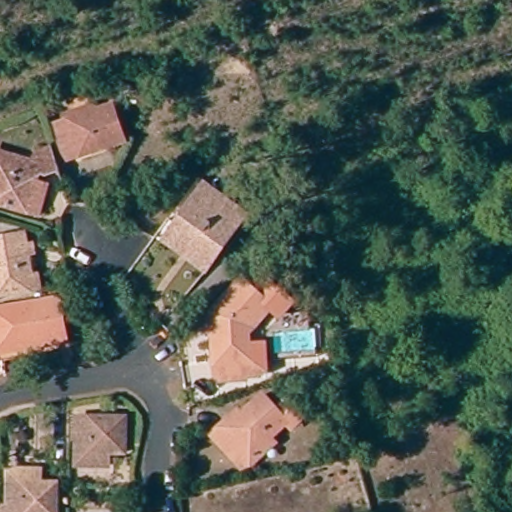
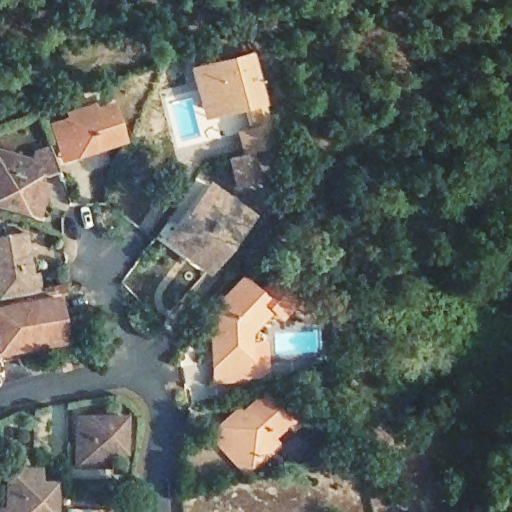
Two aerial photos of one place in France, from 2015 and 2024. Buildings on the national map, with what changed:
new [(234,189),(227,158),(241,154),(235,131),(251,126),(246,108),(243,109),(201,121),(188,66),(249,50),(262,99),(275,146),(252,151),(259,180),(234,189)]
unchanged [(57,140),(51,122),(69,116),(66,110),(91,100),(93,107),(109,102),(121,136),(78,151),(63,156),(57,140)]
unchanged [(38,211),(0,200),(0,148),(11,152),(38,159),(35,148),(50,143),(58,165),(41,171),(39,163),(35,177),(46,180),(38,211)]
unchanged [(166,240),(176,226),(207,187),(248,218),(217,258),(207,272),(166,240)]
unchanged [(24,244),(29,243),(31,254),(26,255),(29,277),(35,276),(38,292),(0,298),(0,238),(21,235),(24,244)]
unchanged [(245,374),(235,374),(235,379),(206,381),(204,335),(199,335),(198,318),(199,318),(233,280),(249,294),(260,281),(282,302),(270,315),(261,307),(237,332),(238,344),(243,344),(255,344),(257,373),(245,374)]
unchanged [(0,308),(57,299),(64,339),(65,343),(15,351),(16,359),(0,361),(0,308)]
unchanged [(247,464),(233,477),(200,440),(212,429),(228,416),(231,419),(252,400),(267,416),(280,404),(295,420),(281,433),(277,428),(259,444),(264,449),(247,464)]
unchanged [(74,465),(74,445),(75,415),(123,417),(123,453),(106,453),(106,466),(74,465)]
unchanged [(1,512),(1,499),(1,479),(33,479),(33,493),(50,493),(50,512),(1,512)]

